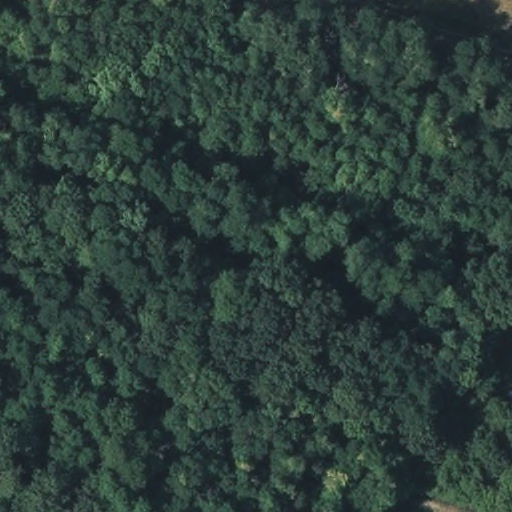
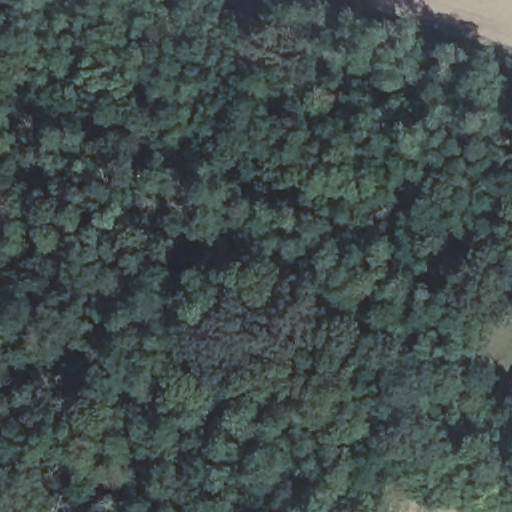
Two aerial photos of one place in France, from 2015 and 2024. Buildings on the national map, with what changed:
[]

